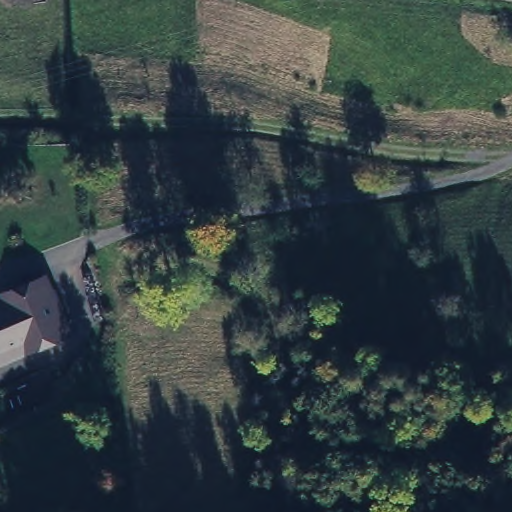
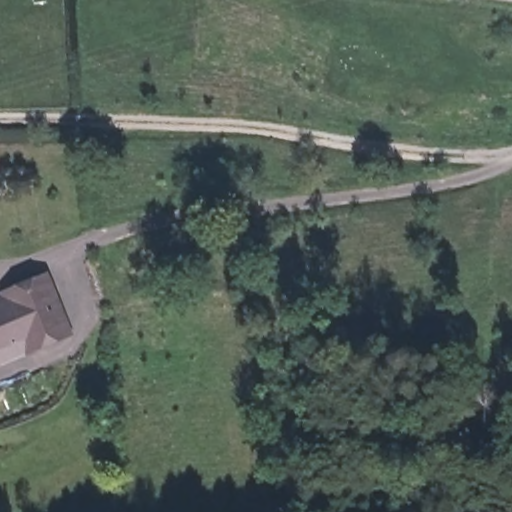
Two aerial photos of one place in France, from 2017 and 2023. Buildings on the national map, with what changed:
unchanged [(12,301),(16,293),(50,280),(70,335),(6,360),(0,362),(0,306),(12,301)]

